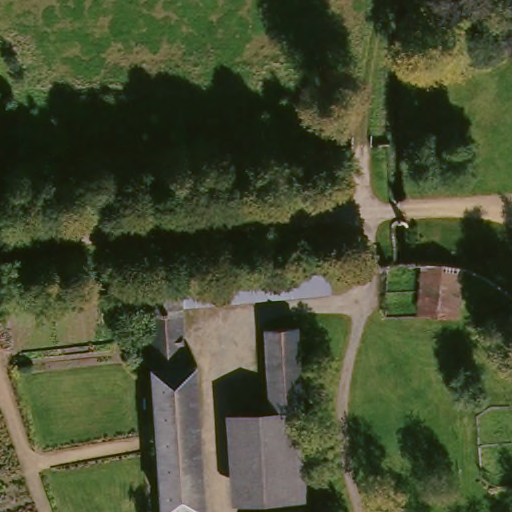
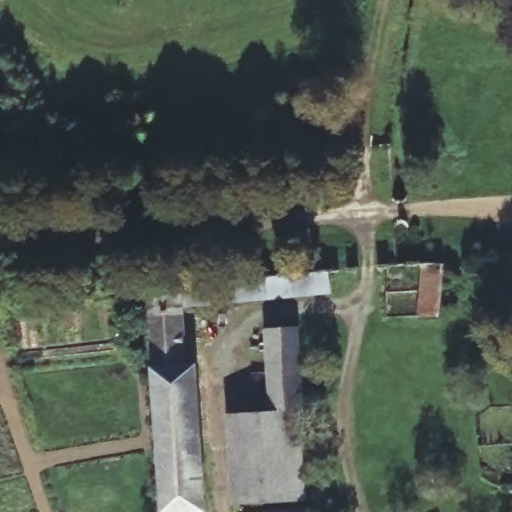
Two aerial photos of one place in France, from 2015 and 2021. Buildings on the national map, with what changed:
unchanged [(185,280),(191,280),(316,267),(327,266),(329,296),(187,310),(185,280)]
unchanged [(191,367),(199,367),(209,503),(198,505),(199,512),(165,512),(151,283),(185,280),(187,310),(191,367)]
unchanged [(261,343),(294,340),(301,415),(268,417),(261,343)]
unchanged [(233,420),(268,417),(301,415),(307,496),(239,501),(233,420)]
unchanged [(308,503),(309,512),(267,512),(267,505),(308,503)]

